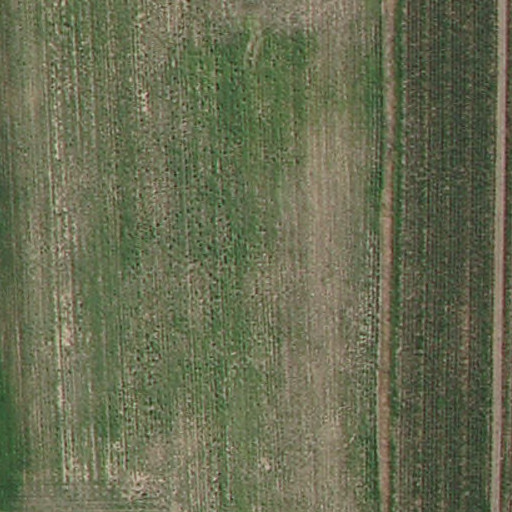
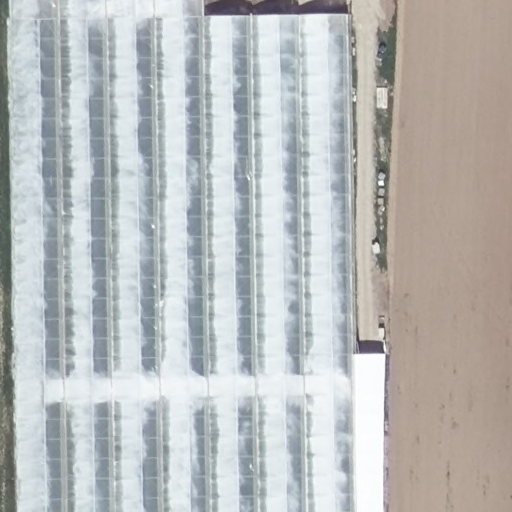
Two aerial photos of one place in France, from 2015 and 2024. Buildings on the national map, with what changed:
new [(204,0),(204,16),(348,14),(354,354),(384,354),(384,512),(19,512),(10,0),(204,0)]

